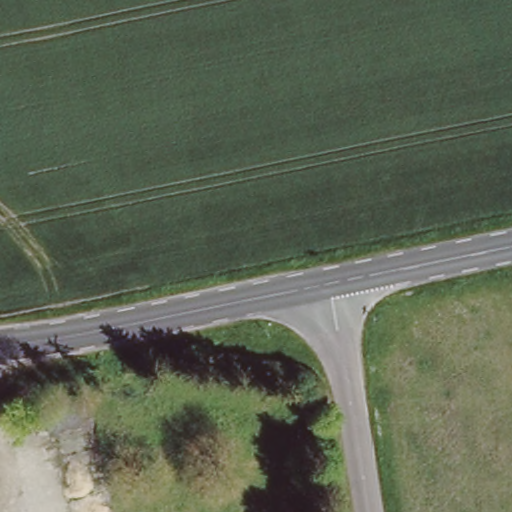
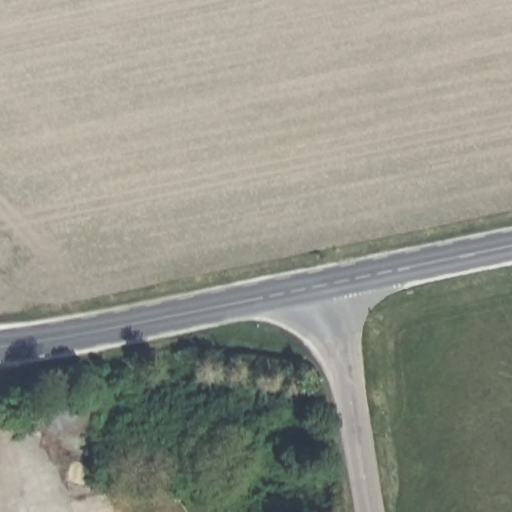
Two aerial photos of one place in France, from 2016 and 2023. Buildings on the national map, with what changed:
[]

